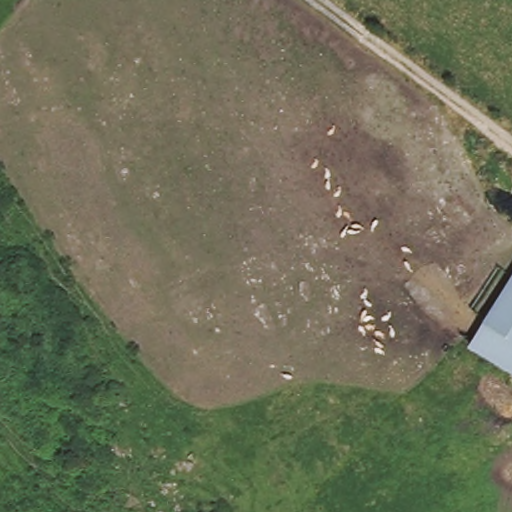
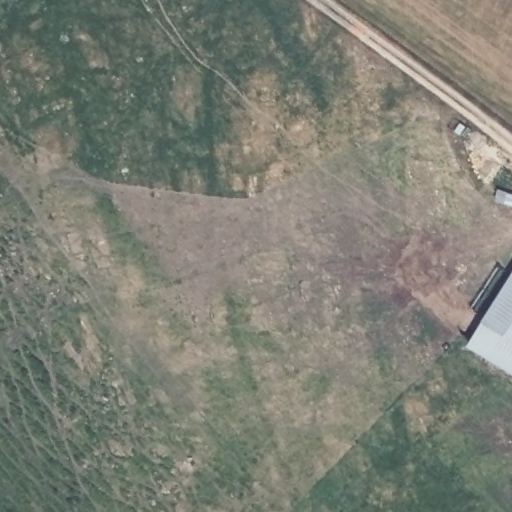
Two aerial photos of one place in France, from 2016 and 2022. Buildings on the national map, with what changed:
unchanged [(486,321),(512,279),(512,374),(470,348),(486,321)]

